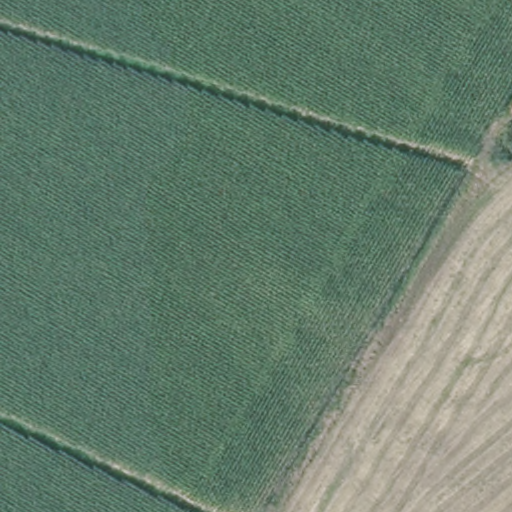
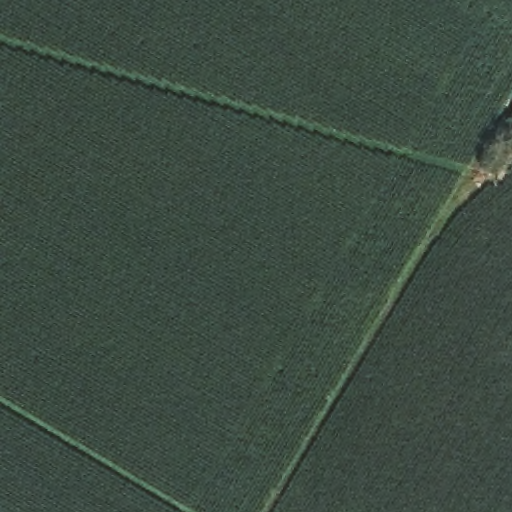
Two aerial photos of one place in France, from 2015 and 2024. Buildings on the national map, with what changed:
unchanged [(511,114),(512,114),(512,115),(511,114)]

